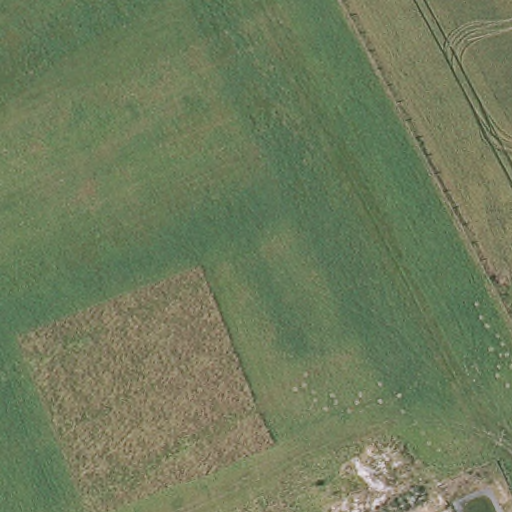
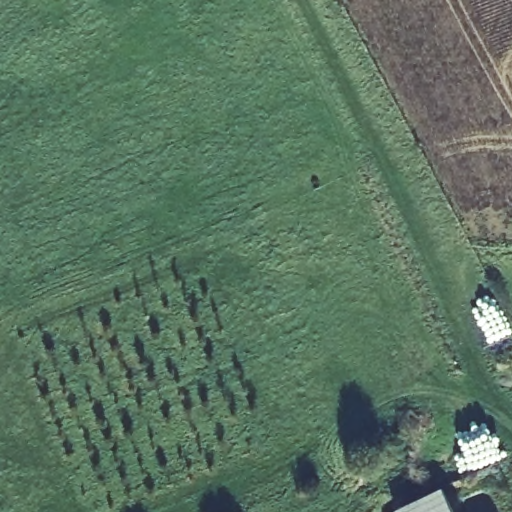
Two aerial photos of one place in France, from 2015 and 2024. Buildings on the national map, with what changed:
new [(454,512),(396,512),(394,507),(442,485),(454,512)]

